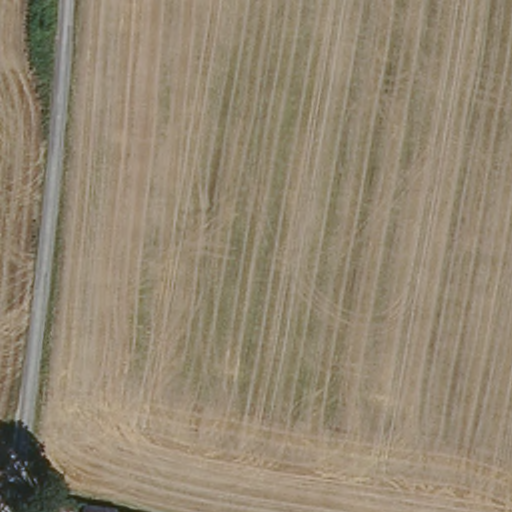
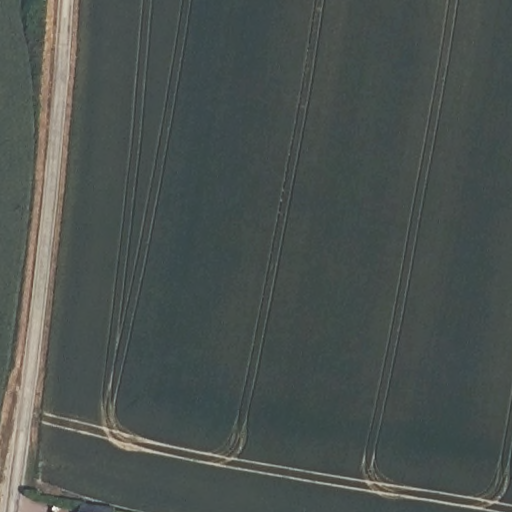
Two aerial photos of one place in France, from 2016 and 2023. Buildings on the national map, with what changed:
unchanged [(117,512),(80,512),(82,498),(117,503),(117,512)]

